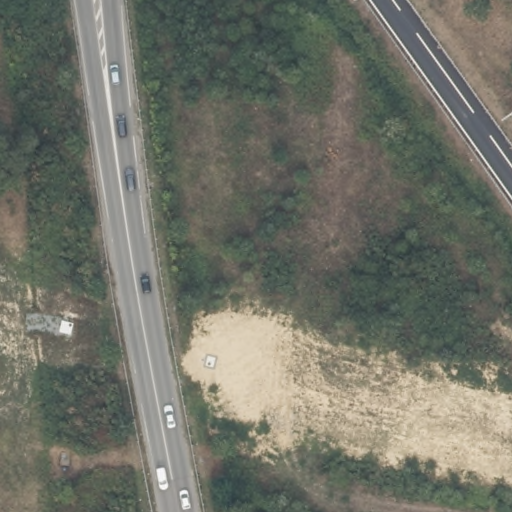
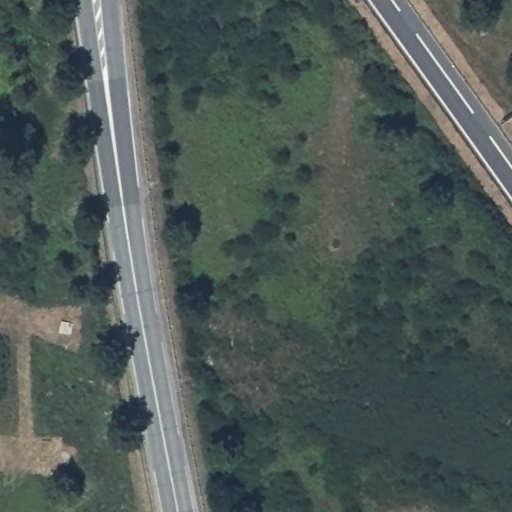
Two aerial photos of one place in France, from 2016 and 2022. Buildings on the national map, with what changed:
[]

